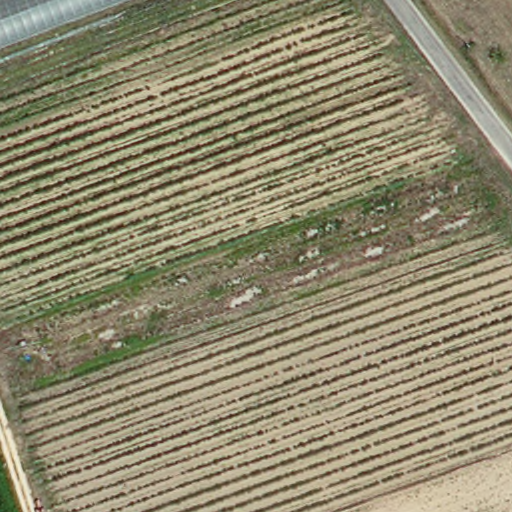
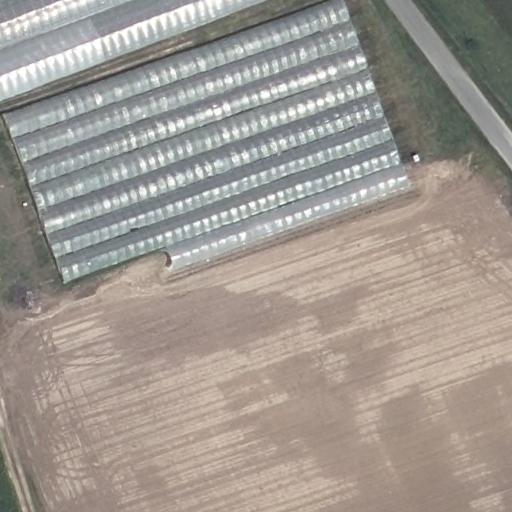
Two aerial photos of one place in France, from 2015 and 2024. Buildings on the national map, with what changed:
unchanged [(0,0),(132,0),(0,48),(0,0)]
new [(264,0),(0,101),(0,48),(132,0),(264,0)]
new [(333,0),(341,0),(408,187),(171,270),(162,248),(60,283),(0,115),(333,0)]
new [(25,400),(0,321),(0,308),(457,145),(490,237),(25,400)]

